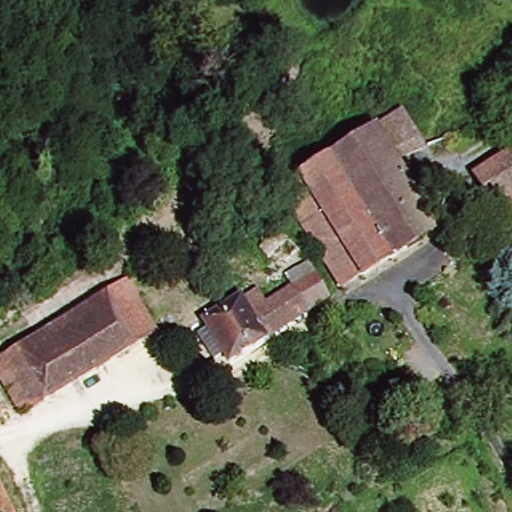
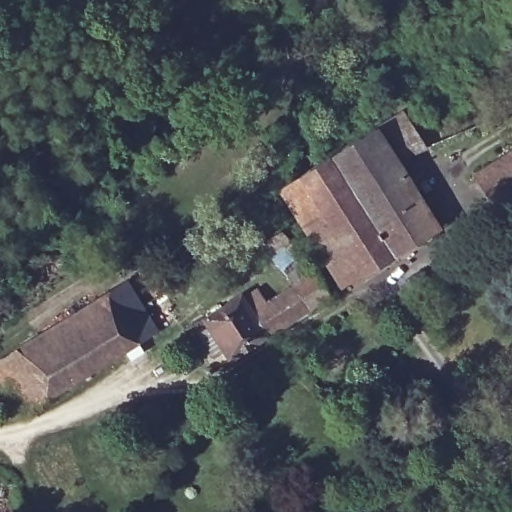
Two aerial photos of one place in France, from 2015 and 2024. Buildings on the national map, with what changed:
unchanged [(303,182),(403,115),(413,129),(385,147),(438,234),(363,281),(303,182)]
unchanged [(497,211),(490,200),(473,175),(512,149),(512,208),(509,202),(497,211)]
unchanged [(303,182),(363,281),(344,292),(282,195),(303,182)]
unchanged [(290,241),(264,263),(250,253),(279,227),(290,241)]
unchanged [(217,259),(203,268),(188,243),(202,236),(217,259)]
unchanged [(202,318),(242,294),(253,311),(297,285),(291,276),(279,267),(298,249),(319,272),(333,297),(312,310),(228,360),(202,318)]
unchanged [(25,409),(0,369),(0,356),(128,281),(158,330),(25,409)]
unchanged [(12,512),(0,512),(0,483),(12,512)]

